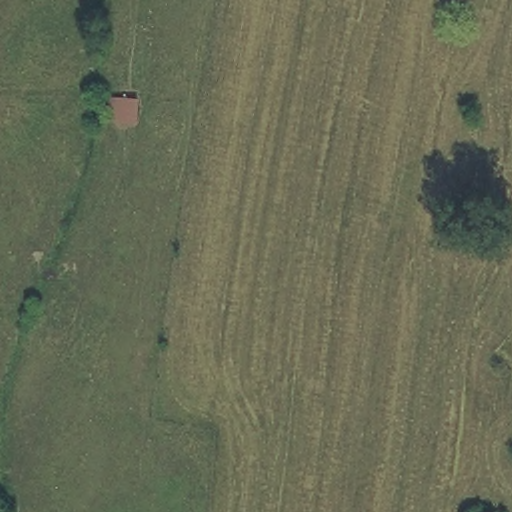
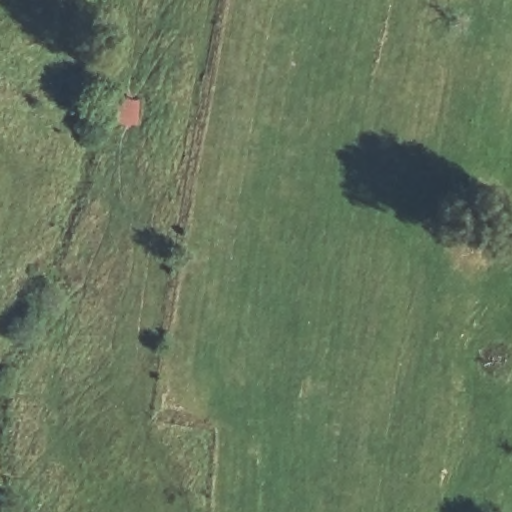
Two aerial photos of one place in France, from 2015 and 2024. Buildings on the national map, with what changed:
unchanged [(146,101),(143,126),(116,121),(118,100),(146,101)]

